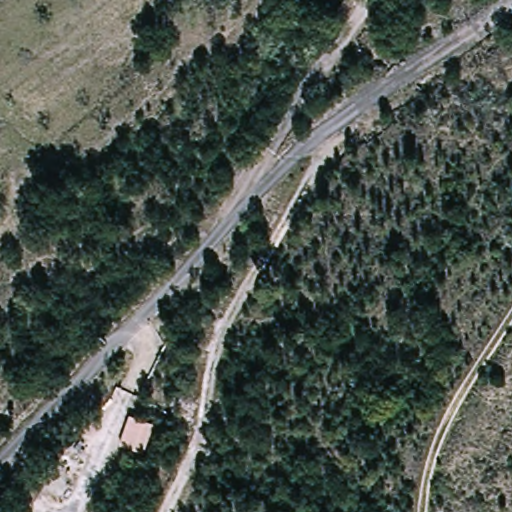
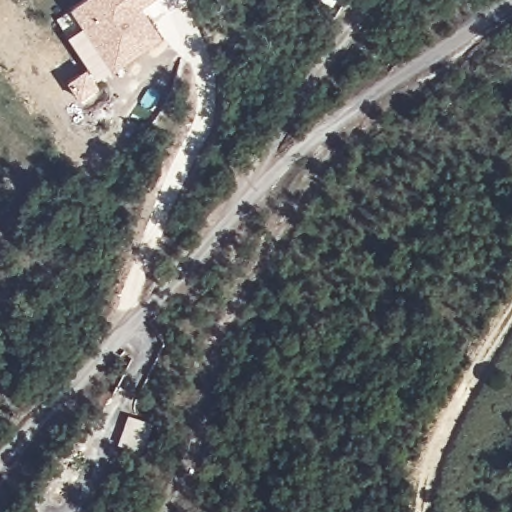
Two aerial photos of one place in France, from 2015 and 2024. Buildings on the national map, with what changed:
new [(153,0),(140,10),(158,39),(113,70),(72,7),(82,0),(153,0)]

